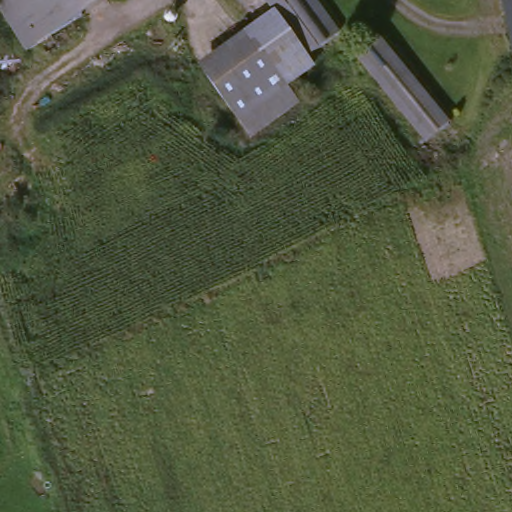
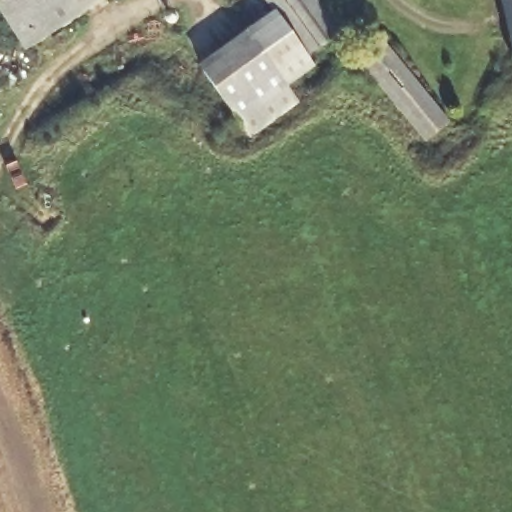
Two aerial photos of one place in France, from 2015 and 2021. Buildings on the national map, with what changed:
unchanged [(29,45),(0,0),(101,0),(60,28),(29,45)]
unchanged [(244,26),(276,3),(274,0),(319,0),(343,33),(309,52),(318,62),(279,90),(240,37),(248,31),(244,26)]
unchanged [(511,65),(496,0),(512,0),(512,65),(511,65)]
unchanged [(279,90),(291,106),(243,142),(195,73),(240,37),(279,90)]
unchanged [(381,49),(443,134),(416,151),(355,67),(381,49)]

